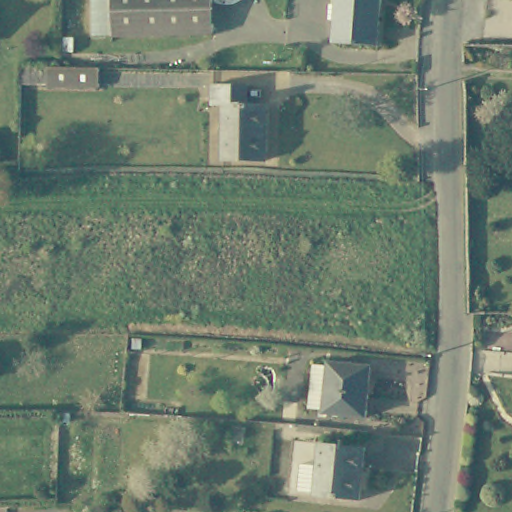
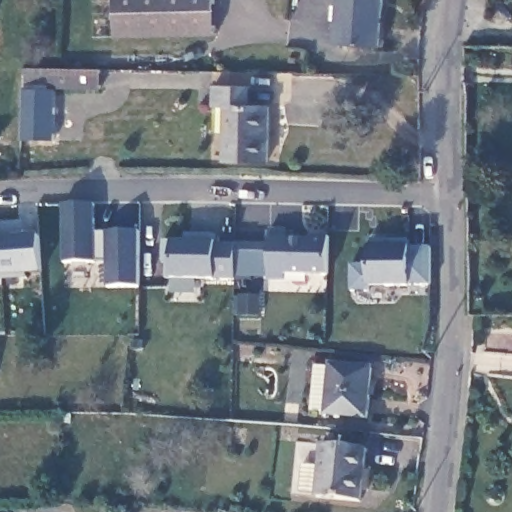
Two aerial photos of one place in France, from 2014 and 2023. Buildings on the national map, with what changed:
unchanged [(115,36),(114,0),(213,0),(214,33),(115,36)]
unchanged [(335,47),(338,0),(383,0),(379,50),(335,47)]
unchanged [(100,69),(99,92),(48,90),(48,68),(59,68),(100,69)]
unchanged [(270,161),(228,160),(229,107),(218,107),(218,86),(247,87),(247,106),(272,107),(270,161)]
new [(137,286),(106,286),(105,261),(62,262),(61,204),(93,204),(94,232),(137,232),(137,286)]
new [(285,275),(284,283),(268,283),(268,226),(286,226),(287,234),(329,234),(327,277),(285,275)]
new [(430,285),(408,284),(408,286),(368,286),(368,291),(350,291),(349,263),(367,262),(367,238),(408,238),(408,246),(428,246),(430,285)]
new [(214,279),(194,279),(194,293),(170,292),(171,279),(164,279),(165,263),(161,262),(161,241),(171,241),(215,241),(235,243),(233,279),(214,279)]
unchanged [(376,362),(372,413),(331,408),(331,404),(315,403),(320,361),(335,363),(336,358),(376,362)]
unchanged [(361,502),(316,496),(322,445),(366,449),(361,502)]

